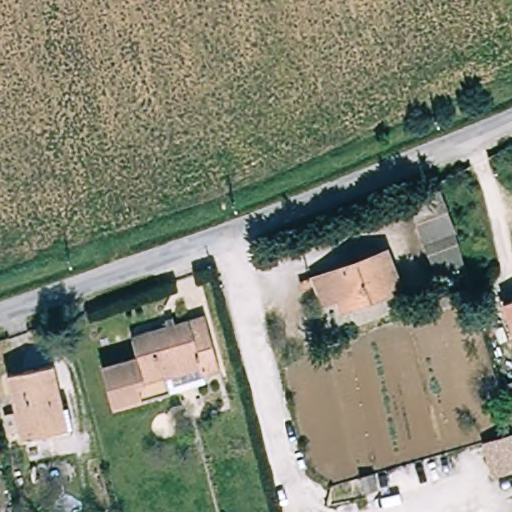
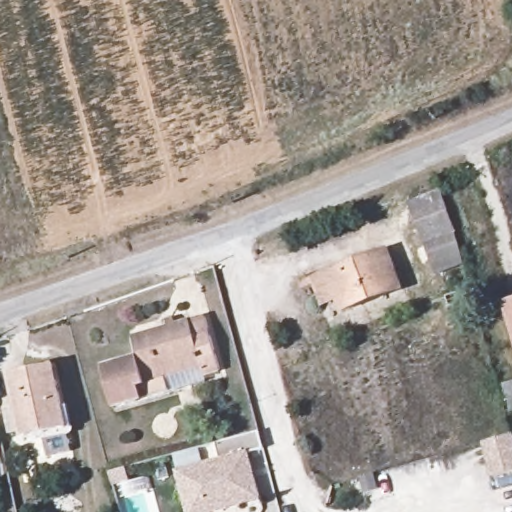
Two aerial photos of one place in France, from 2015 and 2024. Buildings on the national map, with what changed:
unchanged [(447,216),(459,258),(429,270),(414,228),(447,216)]
unchanged [(391,263),(405,300),(347,321),(342,308),(328,314),(319,289),(391,263)]
unchanged [(473,300),(428,316),(423,304),(470,288),(473,300)]
unchanged [(512,349),(500,309),(512,305),(512,349)]
unchanged [(127,334),(198,313),(213,366),(199,370),(200,377),(108,403),(97,363),(132,353),(127,334)]
unchanged [(9,377),(52,367),(65,431),(22,440),(20,430),(8,432),(2,395),(12,393),(9,377)]
unchanged [(512,410),(511,411),(504,387),(512,384),(512,410)]
new [(187,512),(177,470),(219,458),(216,443),(259,432),(263,450),(250,453),(262,501),(221,512),(187,512)]
unchanged [(512,472),(491,478),(482,444),(511,435),(512,439),(512,472)]

